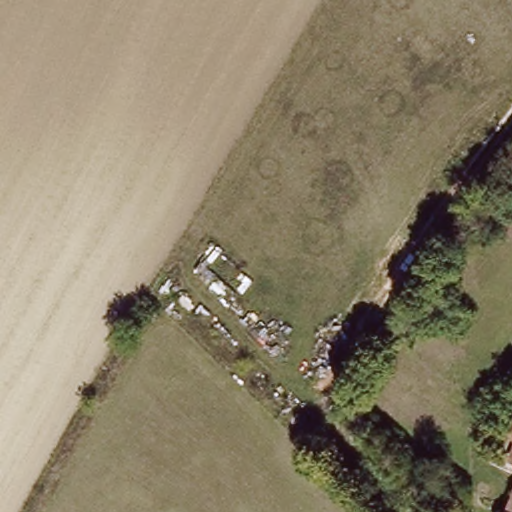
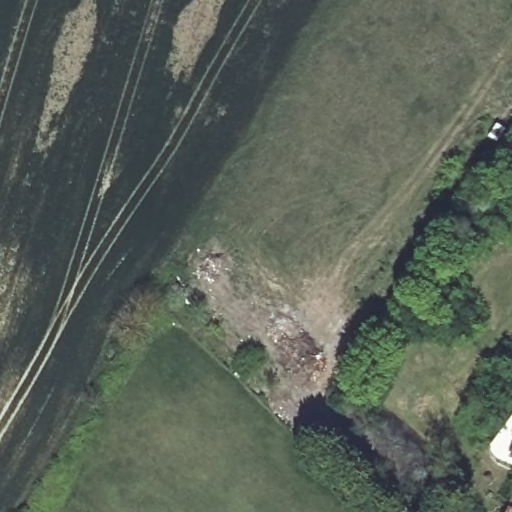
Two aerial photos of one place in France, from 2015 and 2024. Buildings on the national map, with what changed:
unchanged [(509,447),(512,441),(512,449),(509,447)]
unchanged [(499,512),(512,480),(512,512),(499,512)]

